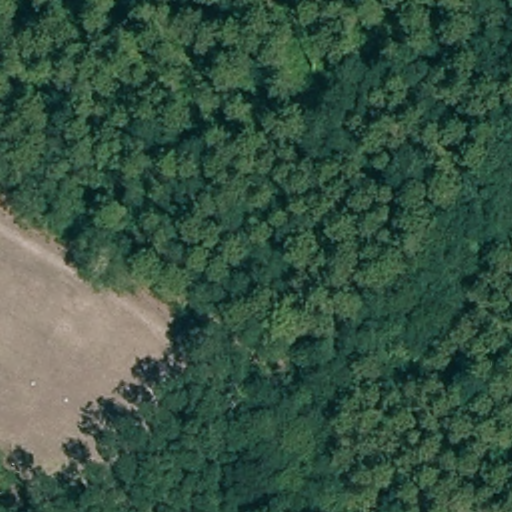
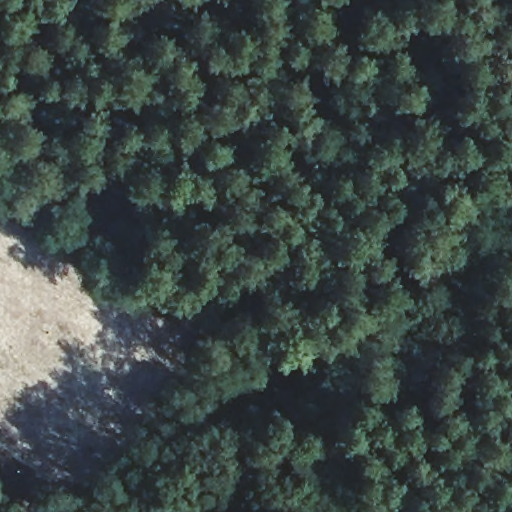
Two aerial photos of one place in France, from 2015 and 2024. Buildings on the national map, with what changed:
[]

